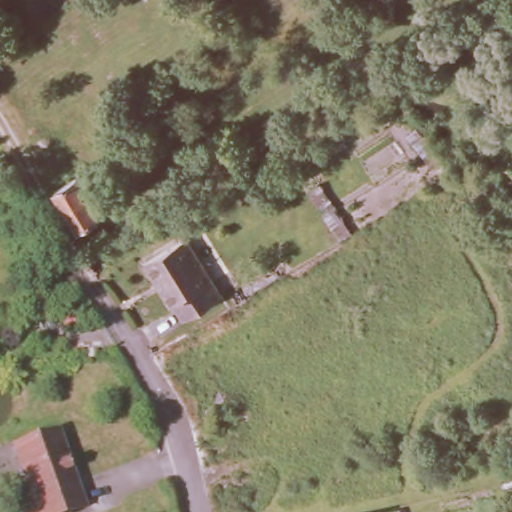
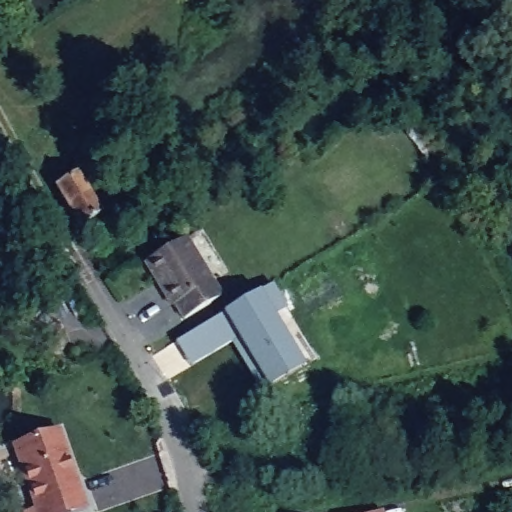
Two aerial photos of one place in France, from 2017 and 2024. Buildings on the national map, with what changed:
unchanged [(78,217),(66,195),(55,175),(77,162),(88,182),(100,205),(78,217)]
unchanged [(512,168),(512,186),(504,173),(512,168)]
unchanged [(187,316),(170,288),(166,290),(147,258),(190,234),(225,294),(187,316)]
new [(232,333),(189,360),(177,341),(260,292),(297,354),(259,377),(232,333)]
unchanged [(66,512),(39,512),(12,443),(62,421),(91,503),(66,512)]

